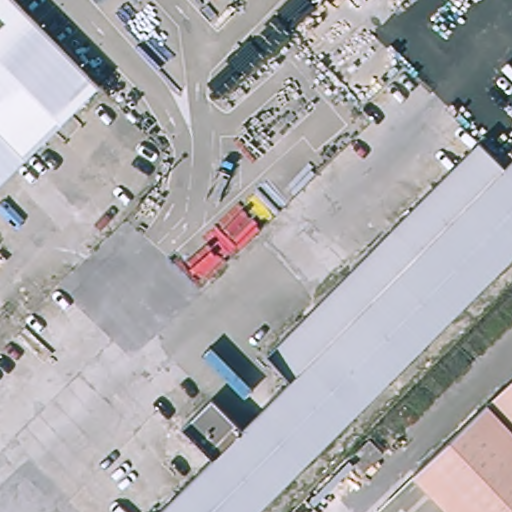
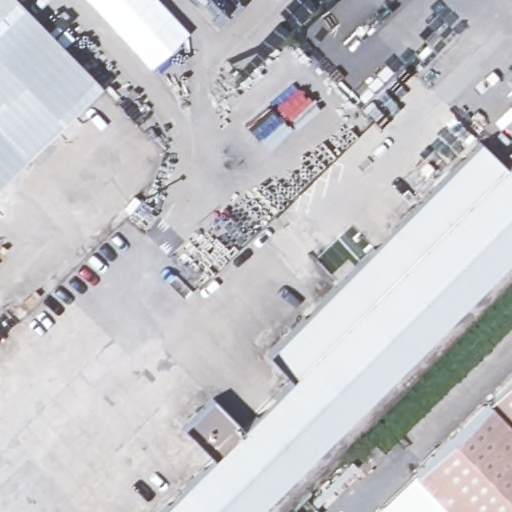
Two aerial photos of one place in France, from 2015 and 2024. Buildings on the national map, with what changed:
unchanged [(95,86),(0,179),(0,0),(9,0),(95,86)]
new [(186,30),(148,66),(89,0),(158,0),(186,30)]
unchanged [(181,420),(213,390),(243,420),(296,367),(273,344),(422,196),(411,186),(426,171),(437,181),(480,139),(509,166),(512,164),(512,256),(254,512),(160,512),(217,455),(181,420)]
demolished [(177,156),(193,171),(177,185),(163,171),(177,156)]
unchanged [(413,474),(512,378),(512,512),(450,512),(428,490),(413,474)]
unchanged [(384,455),(325,512),(316,512),(305,501),(368,438),(384,455)]
unchanged [(450,512),(407,512),(428,490),(450,512)]

